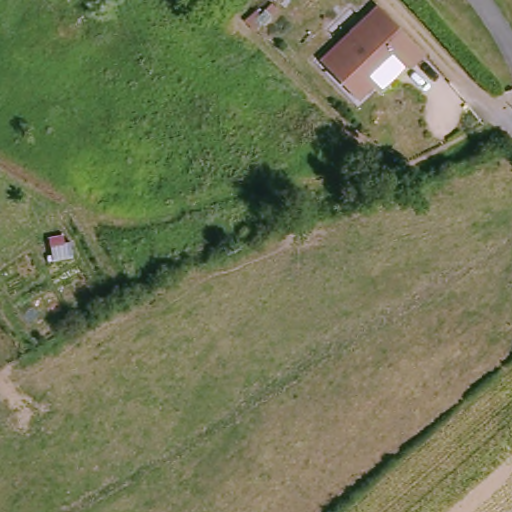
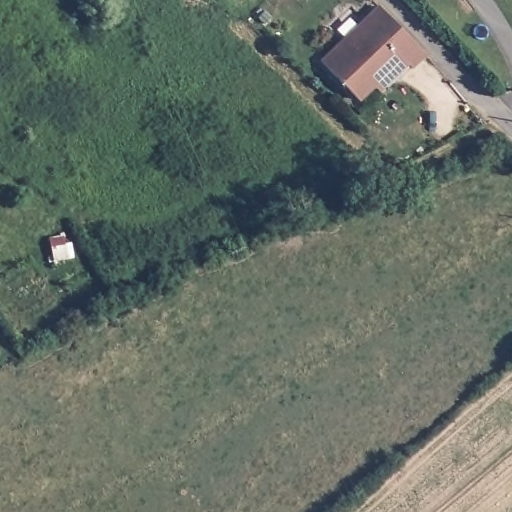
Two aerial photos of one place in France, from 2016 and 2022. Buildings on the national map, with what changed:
unchanged [(376,82),(360,97),(325,57),(383,7),(393,15),(428,54),(414,66),(411,62),(381,89),(376,82)]

